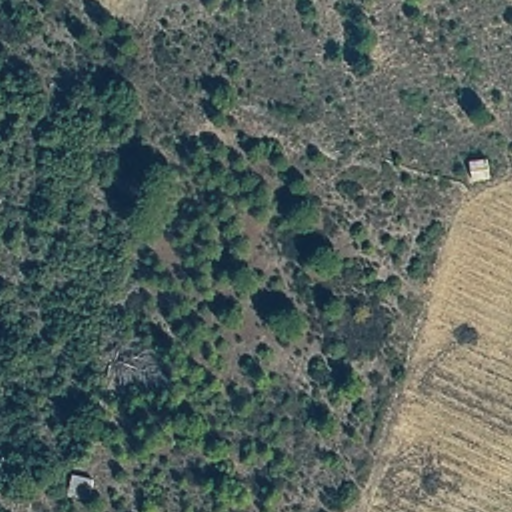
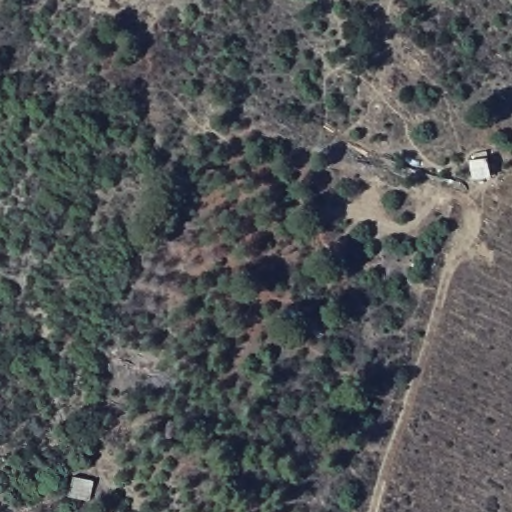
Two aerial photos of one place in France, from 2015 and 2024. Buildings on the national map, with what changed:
unchanged [(496,150),(496,171),(467,179),(466,156),(496,150)]
unchanged [(92,477),(87,497),(70,495),(75,476),(92,477)]

